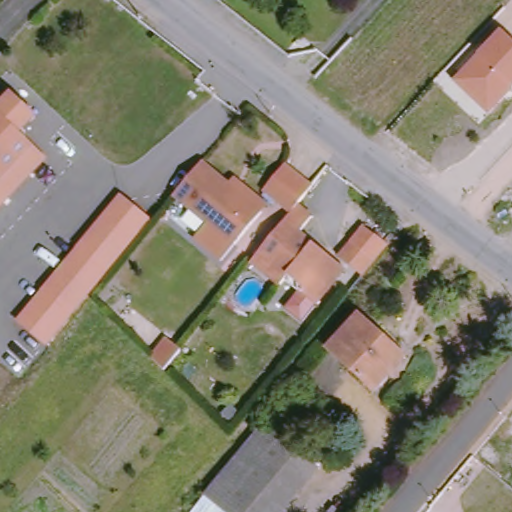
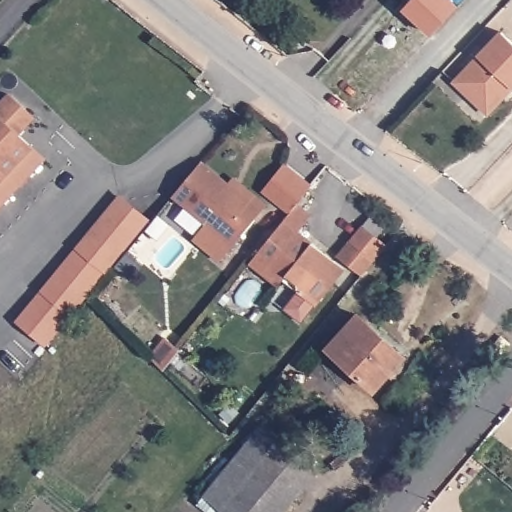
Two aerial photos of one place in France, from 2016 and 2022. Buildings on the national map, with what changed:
new [(404,10),(413,0),(454,0),(461,6),(431,36),(404,10)]
unchanged [(454,83),(505,31),(512,39),(512,94),(491,116),(454,83)]
unchanged [(10,91),(43,119),(24,136),(49,157),(0,209),(0,101),(10,91)]
unchanged [(261,212),(234,246),(221,261),(193,239),(206,223),(172,196),(200,163),(261,212)]
unchanged [(287,212),(259,191),(279,165),(308,187),(287,212)]
unchanged [(48,346),(18,321),(123,194),(153,220),(48,346)]
unchanged [(325,254),(345,270),(317,307),(299,287),(286,277),(278,288),(249,266),(298,204),(311,215),(301,232),(312,244),(325,254)]
unchanged [(385,246),(360,277),(359,277),(336,259),(362,228),(385,246)]
unchanged [(404,351),(372,387),(326,346),(357,310),(404,351)]
unchanged [(171,342),(154,363),(142,350),(148,342),(157,331),(171,342)]
unchanged [(310,476),(281,512),(206,512),(199,506),(256,433),(310,476)]

